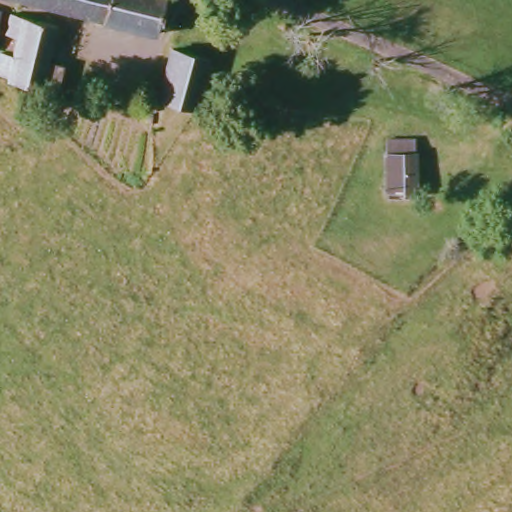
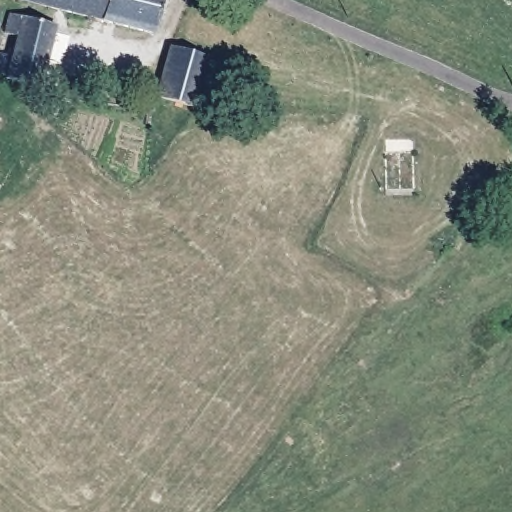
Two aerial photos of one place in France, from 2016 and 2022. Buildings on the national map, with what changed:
unchanged [(12,0),(166,0),(156,37),(12,0)]
unchanged [(4,6),(0,26),(0,4),(4,6)]
unchanged [(0,68),(0,65),(3,51),(17,54),(21,30),(12,27),(13,20),(9,19),(11,6),(61,21),(54,55),(69,59),(63,84),(49,81),(0,68)]
unchanged [(202,107),(161,94),(180,46),(218,59),(207,91),(202,107)]
unchanged [(416,144),(424,193),(397,198),(389,150),(416,144)]

